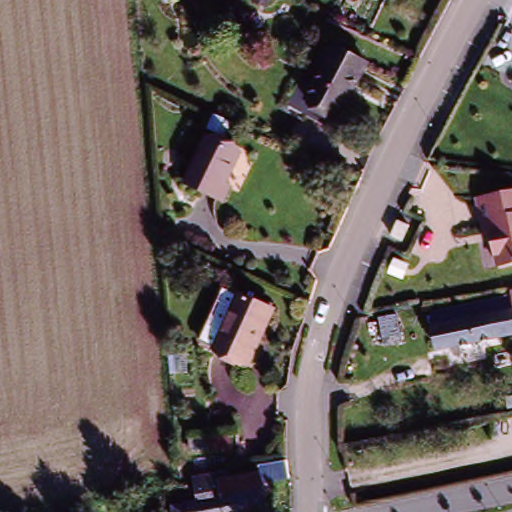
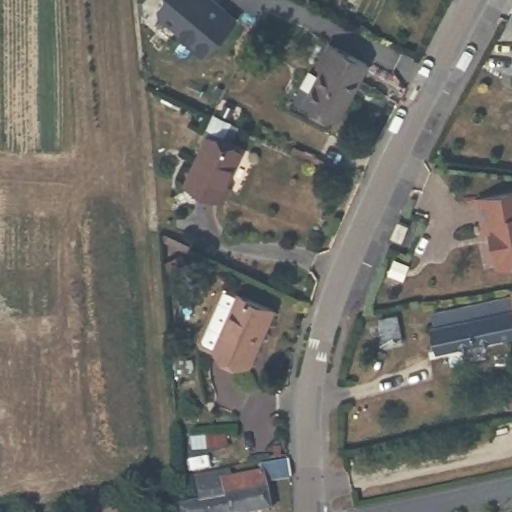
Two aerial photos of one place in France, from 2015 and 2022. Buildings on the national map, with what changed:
new [(208,57),(160,16),(158,5),(161,0),(219,0),(239,18),(208,57)]
unchanged [(343,126),(310,109),(336,57),(368,74),(343,126)]
unchanged [(217,208),(186,191),(213,138),(243,155),(217,208)]
unchanged [(496,242),(488,241),(482,205),(512,199),(512,270),(500,272),(496,242)]
unchanged [(248,372),(211,354),(237,293),(274,312),(248,372)]
unchanged [(441,323),(439,310),(510,295),(512,305),(512,337),(439,352),(434,325),(441,323)]
unchanged [(250,512),(174,512),(171,490),(259,474),(258,464),(284,458),(291,457),(290,477),(286,478),(260,484),(263,510),(250,512)]

